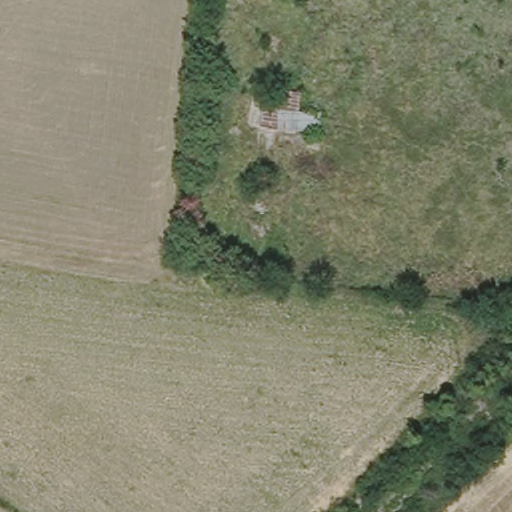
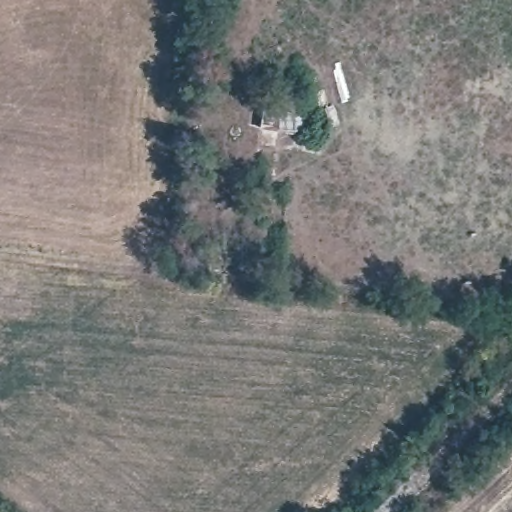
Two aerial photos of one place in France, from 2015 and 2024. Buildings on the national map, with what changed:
unchanged [(303,88),(297,130),(328,133),(328,154),(280,148),(279,179),(251,176),(263,94),(275,96),(276,84),(303,88)]

